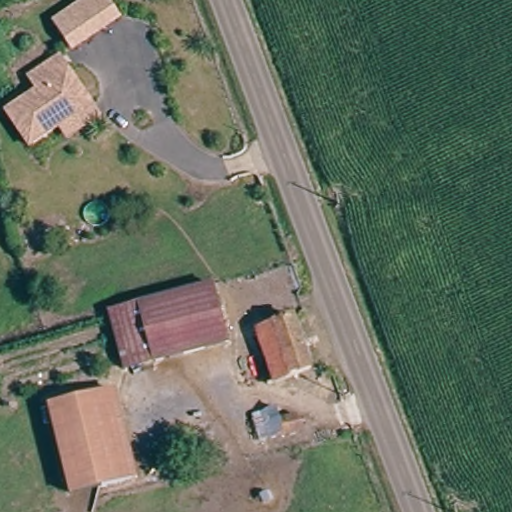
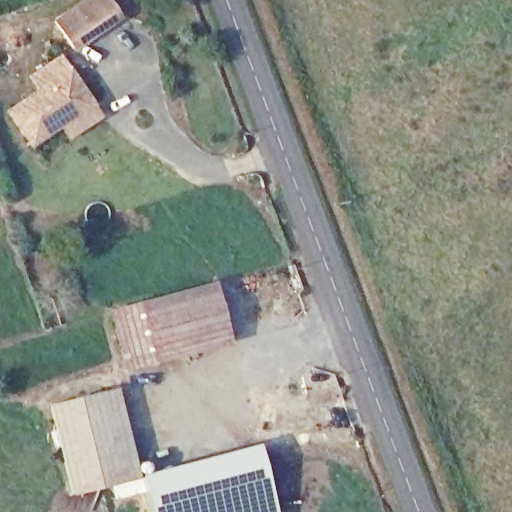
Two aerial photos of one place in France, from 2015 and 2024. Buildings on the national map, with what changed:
unchanged [(57,20),(89,0),(111,0),(122,18),(74,48),(57,20)]
unchanged [(6,104),(37,87),(28,70),(62,50),(96,104),(31,142),(6,104)]
unchanged [(208,274),(227,330),(125,365),(105,309),(208,274)]
demolished [(309,360),(253,377),(244,349),(237,328),(264,319),(291,310),(309,360)]
unchanged [(137,478),(95,492),(86,495),(56,408),(66,405),(108,391),(137,478)]
new [(140,477),(258,445),(276,512),(149,512),(140,477)]

